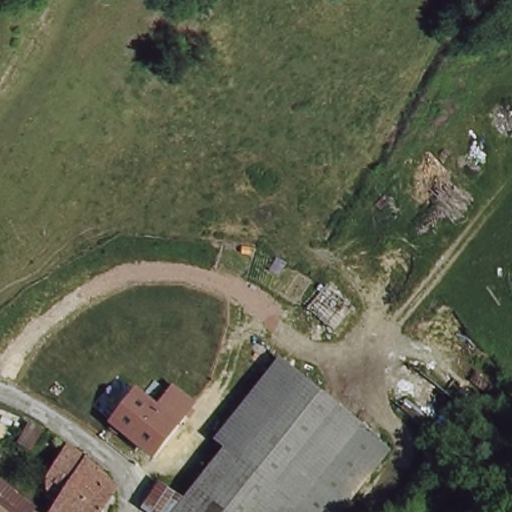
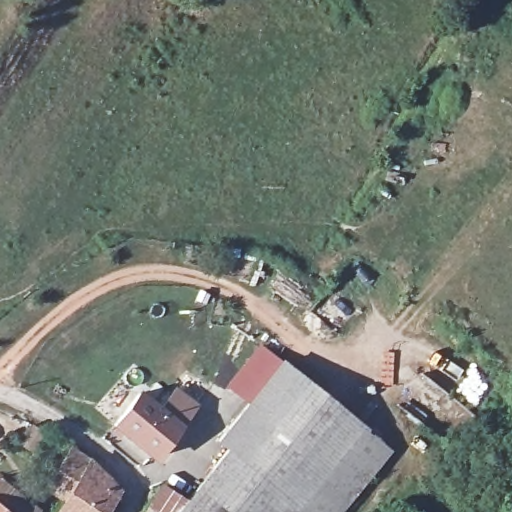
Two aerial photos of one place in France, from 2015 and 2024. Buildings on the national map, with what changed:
unchanged [(141,512),(154,486),(182,505),(224,452),(216,443),(274,362),(390,456),(346,512),(141,512)]
unchanged [(179,427),(156,461),(116,432),(139,396),(179,427)]
unchanged [(108,478),(83,466),(55,512),(51,512),(45,483),(72,443),(104,463),(121,492),(115,500),(102,487),(108,478)]
unchanged [(102,487),(115,500),(107,512),(55,512),(83,466),(108,478),(102,487)]
unchanged [(0,512),(0,487),(27,510),(25,512),(0,512)]

